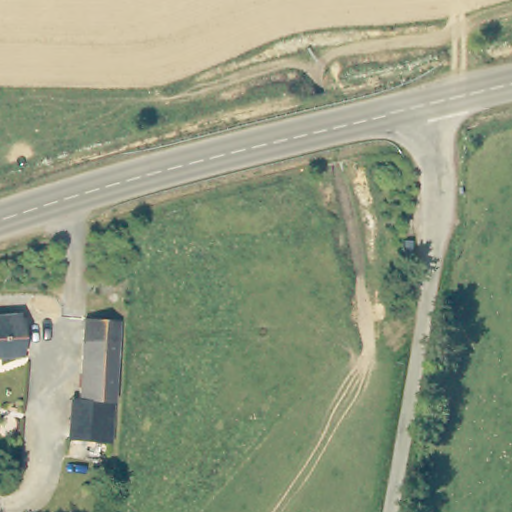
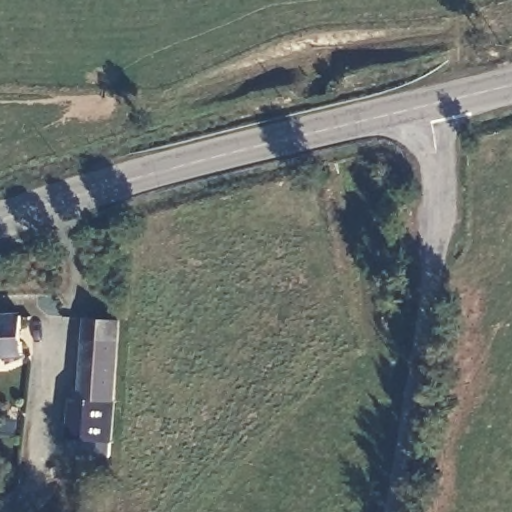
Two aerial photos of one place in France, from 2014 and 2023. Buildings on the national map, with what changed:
unchanged [(17,311),(17,355),(0,356),(0,312),(17,311)]
unchanged [(111,401),(75,397),(88,320),(122,322),(111,401)]
unchanged [(57,436),(62,396),(75,397),(111,401),(104,440),(57,436)]

